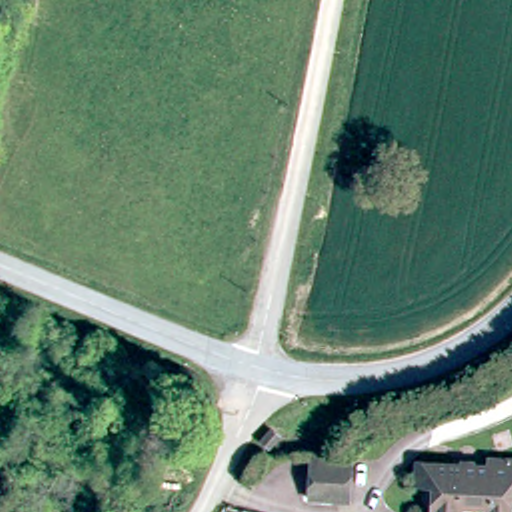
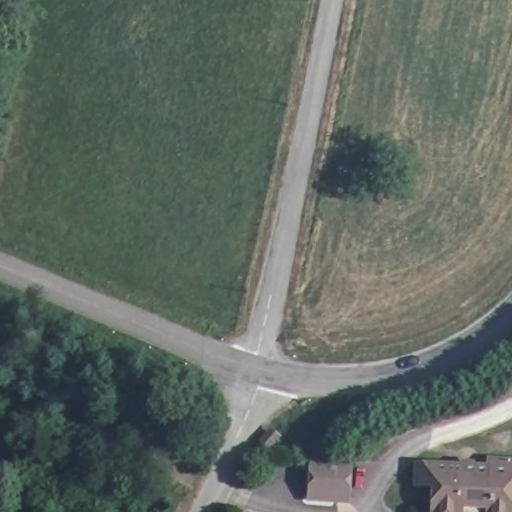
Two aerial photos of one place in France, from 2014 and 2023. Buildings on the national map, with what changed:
unchanged [(512,463),(512,512),(436,512),(438,486),(418,486),(418,468),(438,468),(494,469),(494,463),(512,463)]
unchanged [(316,508),(318,468),(361,470),(358,510),(351,509),(316,508)]

